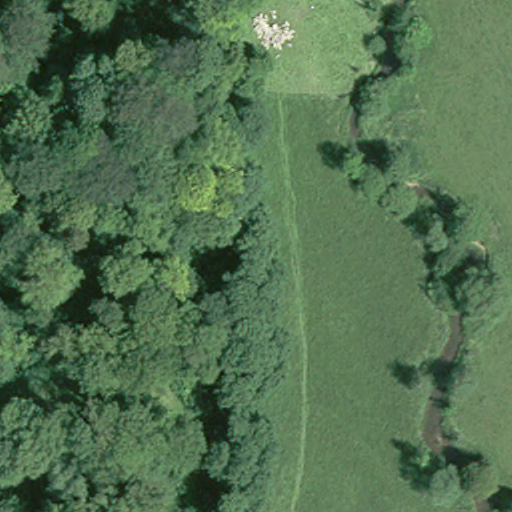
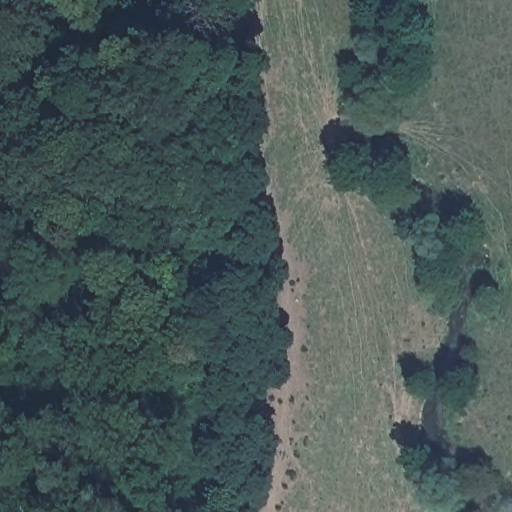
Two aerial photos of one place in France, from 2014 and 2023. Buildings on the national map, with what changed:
unchanged [(58,60),(37,69),(21,35),(41,27),(58,60)]

